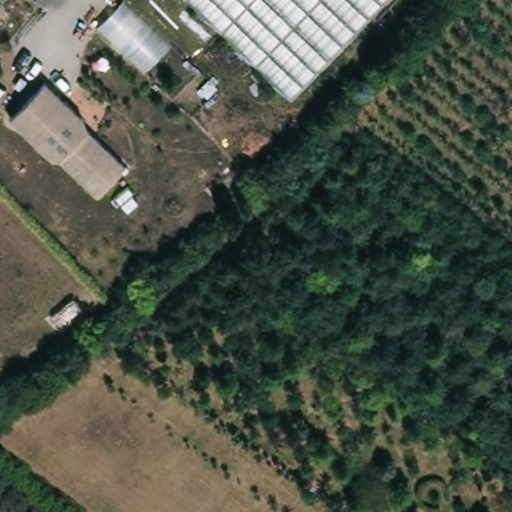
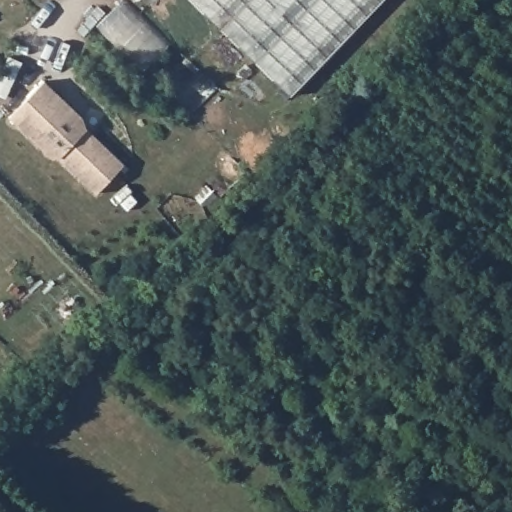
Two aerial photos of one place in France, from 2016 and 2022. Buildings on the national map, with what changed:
unchanged [(190,0),(386,0),(293,99),(190,0)]
unchanged [(83,116),(87,129),(125,165),(96,194),(59,158),(50,156),(10,117),(45,79),(83,116)]

